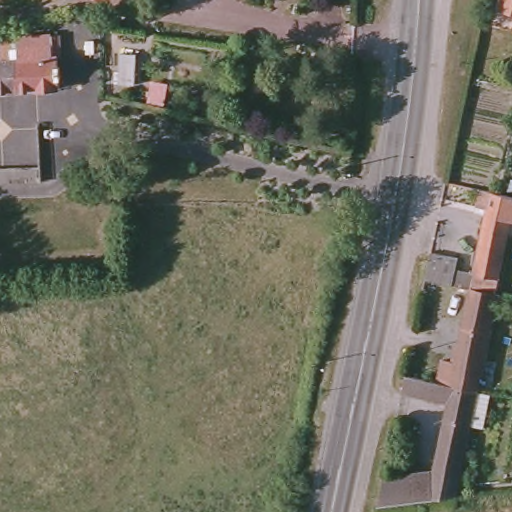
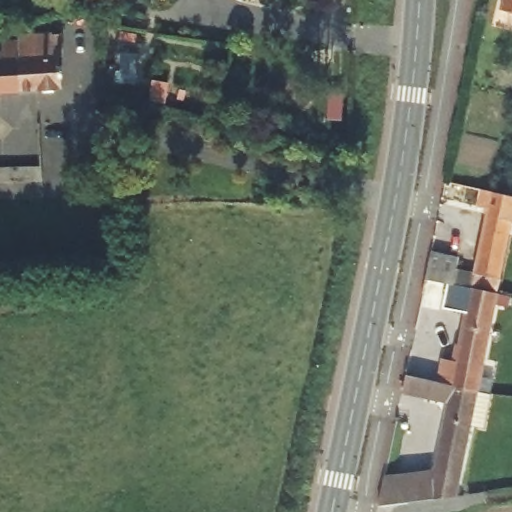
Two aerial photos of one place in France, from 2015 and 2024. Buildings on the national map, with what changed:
unchanged [(500,0),(512,0),(512,15),(497,12),(500,0)]
unchanged [(1,63),(1,48),(18,46),(19,42),(61,38),(61,59),(58,60),(58,92),(0,95),(0,63),(1,63)]
unchanged [(123,65),(122,95),(105,95),(106,65),(123,65)]
unchanged [(40,166),(40,180),(0,181),(0,166),(40,166)]
unchanged [(473,282),(472,288),(431,279),(436,255),(456,258),(455,269),(478,273),(488,219),(480,215),(485,192),(512,198),(512,222),(498,286),(473,282)]
unchanged [(494,309),(477,387),(441,381),(445,361),(458,363),(472,288),(508,296),(506,308),(494,309)]
unchanged [(454,499),(383,505),(386,489),(389,479),(437,470),(451,399),(407,391),(411,376),(441,381),(477,387),(454,499)]

